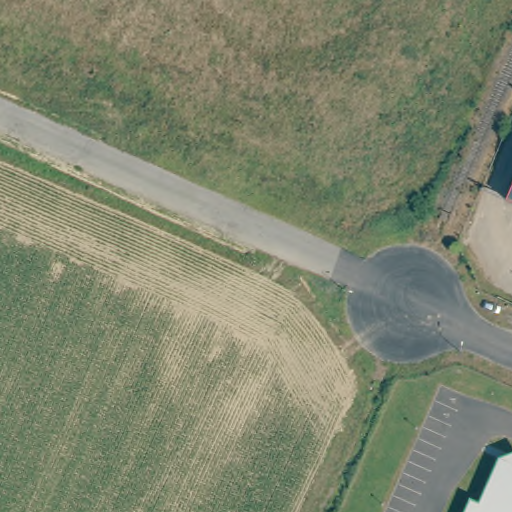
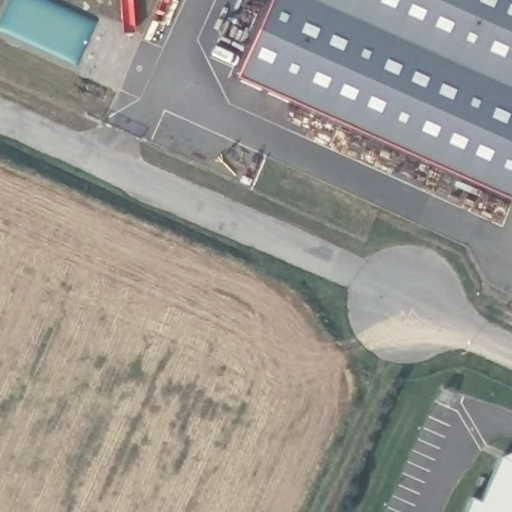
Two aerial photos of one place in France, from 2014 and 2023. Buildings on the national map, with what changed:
new [(512,187),(506,200),(234,79),(269,0),(512,0),(512,187)]
unchanged [(512,187),(512,203),(506,200),(512,187)]
unchanged [(478,505),(498,461),(512,468),(512,512),(465,512),(470,501),(478,505)]

